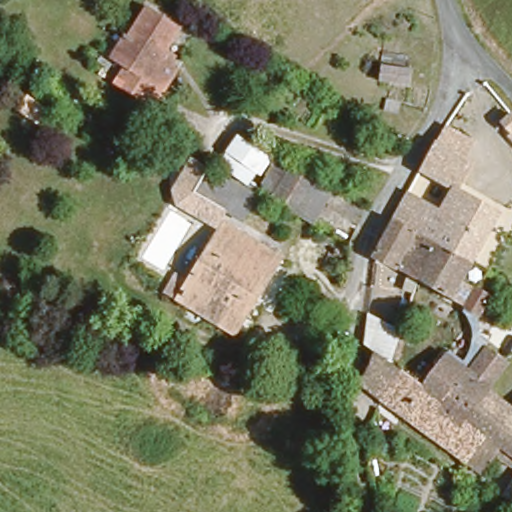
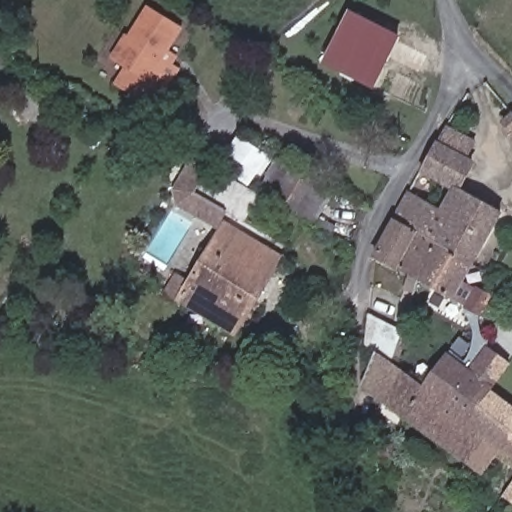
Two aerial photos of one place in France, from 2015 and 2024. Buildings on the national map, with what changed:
new [(400,37),(371,88),(322,61),(352,10),(400,37)]
unchanged [(175,30),(169,40),(164,48),(142,84),(125,73),(110,63),(145,11),(175,30)]
unchanged [(125,73),(142,84),(164,48),(175,54),(171,62),(179,69),(150,111),(101,78),(110,63),(125,73)]
demolished [(400,94),(373,93),(374,76),(400,76),(400,94)]
unchanged [(498,125),(484,110),(495,100),(509,115),(498,125)]
unchanged [(234,134),(295,168),(275,208),(257,197),(247,190),(211,170),(234,134)]
unchanged [(436,175),(430,186),(415,177),(437,139),(465,158),(451,183),(436,175)]
unchanged [(275,208),(295,168),(335,188),(311,225),(275,208)]
unchanged [(247,190),(257,197),(241,221),(196,194),(211,170),(247,190)]
unchanged [(435,237),(412,224),(395,214),(409,188),(439,205),(451,183),(491,206),(464,252),(435,237)]
unchanged [(226,223),(278,258),(260,286),(230,266),(216,287),(191,274),(226,223)]
unchanged [(392,260),(412,224),(435,237),(415,273),(392,260)]
unchanged [(443,288),(415,273),(435,237),(464,252),(443,288)]
unchanged [(216,287),(230,266),(260,286),(229,334),(172,302),(191,274),(216,287)]
unchanged [(486,291),(476,305),(465,299),(475,285),(486,291)]
unchanged [(481,453),(468,466),(401,414),(383,400),(366,387),(367,368),(380,352),(370,344),(370,340),(377,318),(402,327),(392,362),(396,365),(401,369),(422,385),(452,343),(452,342),(465,353),(460,360),(467,365),(484,344),(508,362),(487,391),(511,409),(512,409),(512,454),(499,443),(487,458),(481,453)]
unchanged [(512,408),(512,409),(511,409),(512,408)]

